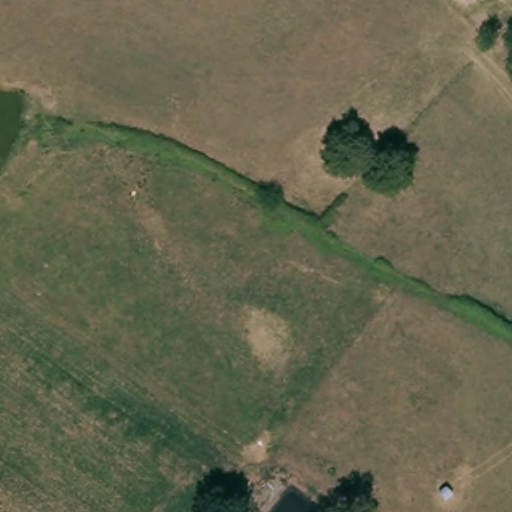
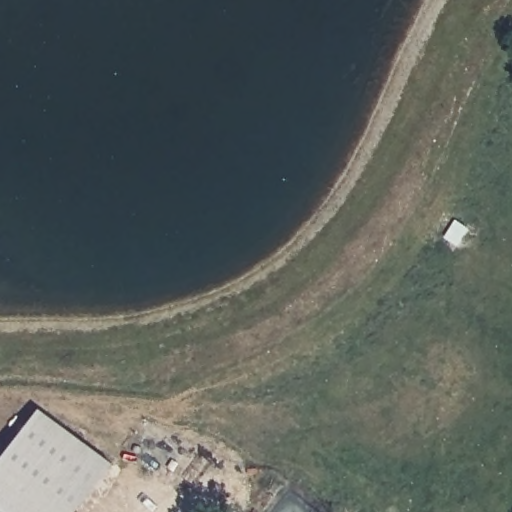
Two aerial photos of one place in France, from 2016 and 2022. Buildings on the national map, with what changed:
new [(115,464),(79,512),(0,512),(0,463),(40,409),(115,464)]

